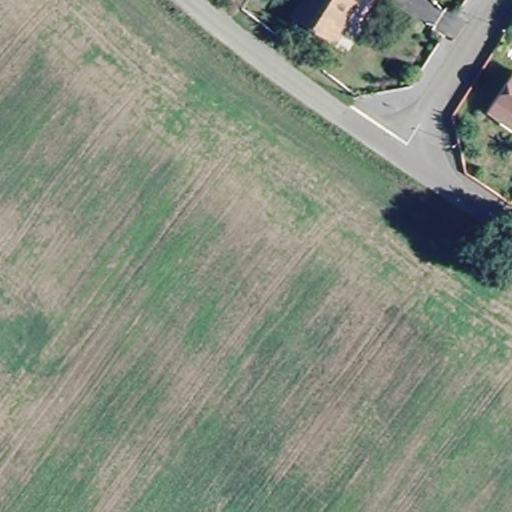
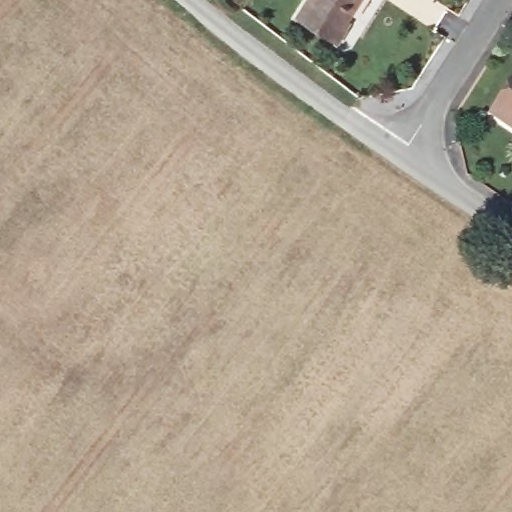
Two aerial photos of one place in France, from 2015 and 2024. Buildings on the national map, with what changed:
unchanged [(344,27),(336,40),(293,14),(301,0),(355,0),(346,16),(349,18),(344,27)]
unchanged [(509,119),(491,105),(512,75),(512,121),(509,119)]

